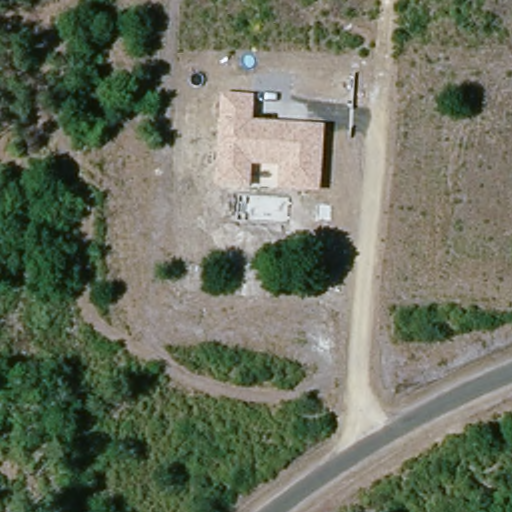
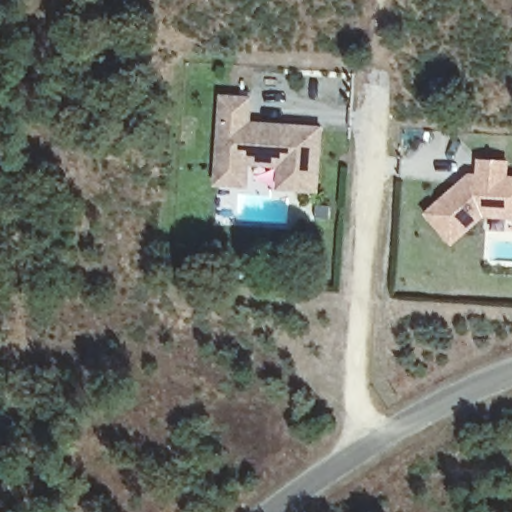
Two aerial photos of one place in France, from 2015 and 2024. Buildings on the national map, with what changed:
unchanged [(322,194),(278,191),(279,169),(253,167),(252,190),(216,187),(221,96),(256,99),(255,122),(325,128),(322,194)]
new [(454,245),(425,213),(471,173),(478,174),(479,159),(512,161),(510,177),(512,177),(512,219),(484,217),(454,245)]

